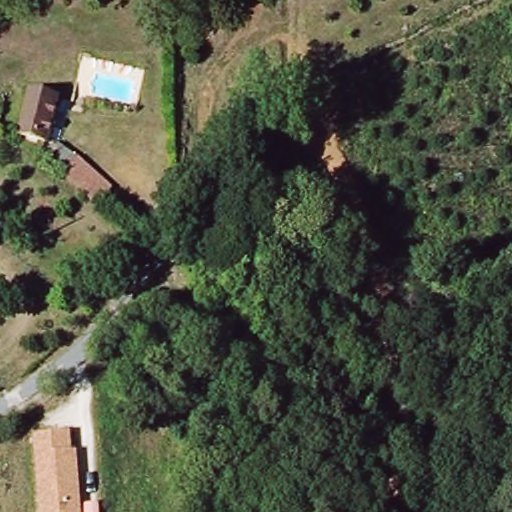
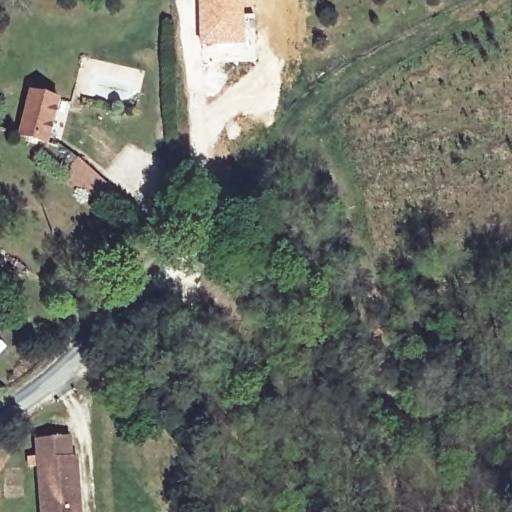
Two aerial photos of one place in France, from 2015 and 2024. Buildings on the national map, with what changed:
new [(245,44),(199,46),(198,0),(244,0),(245,44)]
unchanged [(37,91),(63,98),(50,142),(25,135),(37,91)]
unchanged [(63,177),(78,160),(110,187),(94,204),(63,177)]
unchanged [(72,453),(78,453),(83,512),(38,512),(33,438),(70,433),(72,453)]

